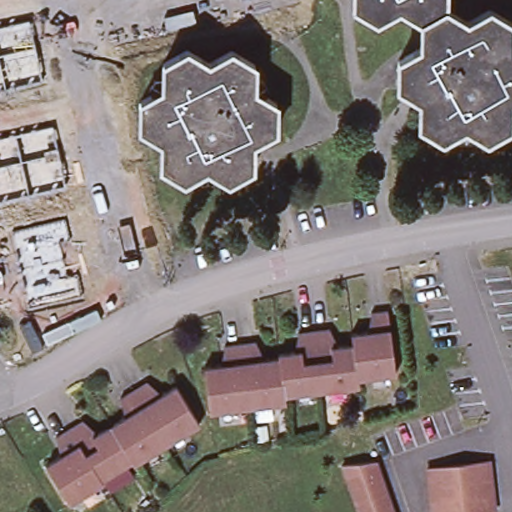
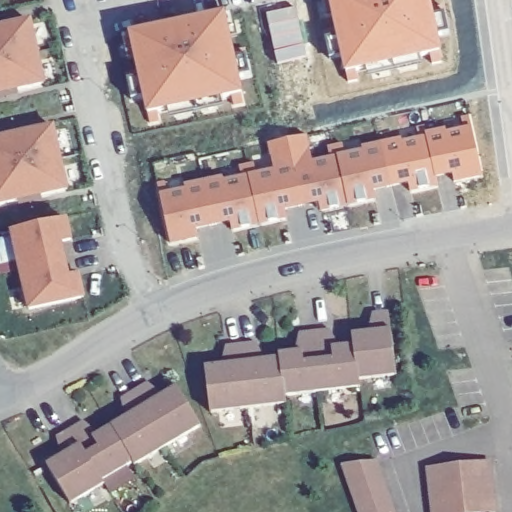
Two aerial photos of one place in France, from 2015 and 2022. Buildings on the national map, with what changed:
new [(344,66),(329,0),(431,0),(441,48),(344,66)]
demolished [(395,86),(395,69),(395,60),(408,53),(419,46),(419,40),(420,21),(397,8),(375,21),(352,6),(352,0),(443,0),(443,9),(465,21),(486,8),(508,23),(424,129),(417,126),(417,100),(395,86)]
new [(235,47),(249,46),(256,78),(242,78),(246,94),(144,116),(140,102),(129,107),(122,75),(133,71),(130,55),(125,60),(120,38),(125,32),(227,9),(235,47)]
new [(47,85),(0,95),(0,25),(32,18),(47,85)]
demolished [(508,48),(512,50),(512,99),(508,101),(507,126),(483,141),(462,128),(440,140),(424,129),(508,23),(510,24),(508,48)]
demolished [(185,49),(207,62),(228,50),(252,65),(252,90),(274,104),(273,130),(252,143),(251,168),(227,182),(206,168),(183,180),(160,165),(160,139),(138,125),(138,99),(162,86),(162,61),(185,49)]
new [(425,136),(425,129),(445,125),(447,128),(462,126),(462,116),(472,116),(482,176),(455,181),(453,173),(435,176),(437,186),(410,193),(407,183),(391,187),(382,145),(425,136)]
new [(69,191),(0,206),(0,136),(53,125),(69,191)]
new [(391,187),(372,191),(374,201),(321,212),(318,202),(284,211),(286,219),(233,230),(230,221),(195,229),(197,238),(170,244),(160,197),(158,185),(165,184),(168,196),(185,193),(185,187),(223,179),(225,184),(242,181),(238,166),(253,163),(257,176),(273,172),(267,144),(307,136),(312,164),(330,161),(327,147),(342,144),(345,157),(363,153),(362,149),(382,145),(391,187)]
new [(72,242),(63,245),(70,277),(80,274),(87,300),(27,313),(10,231),(67,220),(72,242)]
demolished [(42,282),(25,282),(25,306),(0,306),(0,281),(15,282),(15,269),(30,269),(30,257),(43,257),(44,245),(72,246),(72,258),(57,258),(57,270),(42,270),(42,282)]
unchanged [(353,330),(374,327),(372,310),(388,308),(395,371),(358,376),(355,341),(353,330)]
unchanged [(332,326),(334,343),(355,341),(358,376),(359,382),(322,387),(315,328),(332,326)]
unchanged [(322,387),(284,392),(280,354),(280,350),(302,347),(300,330),(315,328),(322,387)]
unchanged [(257,339),(259,356),(280,354),(284,392),(285,398),(247,403),(240,341),(257,339)]
unchanged [(247,403),(209,408),(203,364),(227,361),(225,343),(240,341),(247,403)]
unchanged [(130,394),(143,386),(153,401),(172,388),(197,427),(164,448),(130,394)]
unchanged [(164,448),(130,469),(128,466),(106,430),(127,417),(117,402),(130,394),(164,448)]
unchanged [(128,466),(100,484),(67,434),(81,425),(91,440),(106,430),(128,466)]
unchanged [(101,487),(67,508),(43,470),(63,458),(53,442),(67,434),(100,484),(101,487)]
unchanged [(345,465),(378,462),(395,512),(361,512),(345,465)]
unchanged [(430,471),(492,466),(496,512),(434,512),(430,471)]

